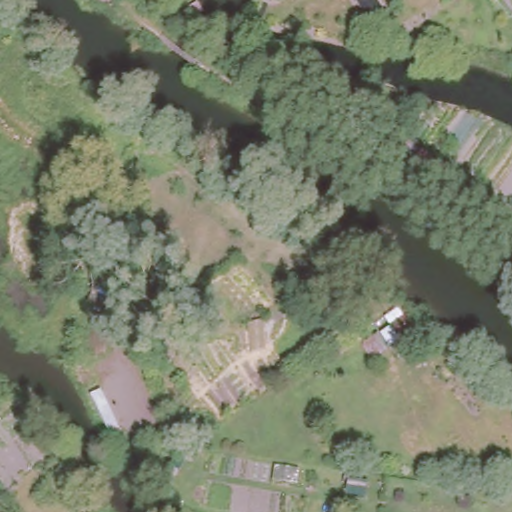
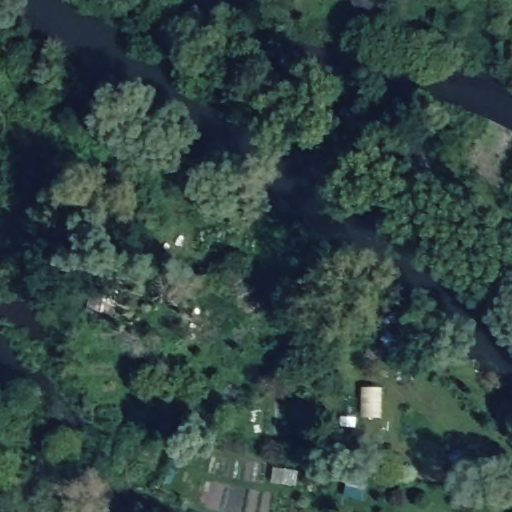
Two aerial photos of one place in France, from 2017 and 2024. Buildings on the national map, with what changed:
unchanged [(364,20),(355,0),(377,0),(382,7),(364,20)]
unchanged [(512,279),(512,281),(511,280),(512,279)]
unchanged [(388,327),(399,345),(374,360),(364,344),(388,327)]
unchanged [(367,498),(344,495),(344,475),(368,478),(367,498)]

